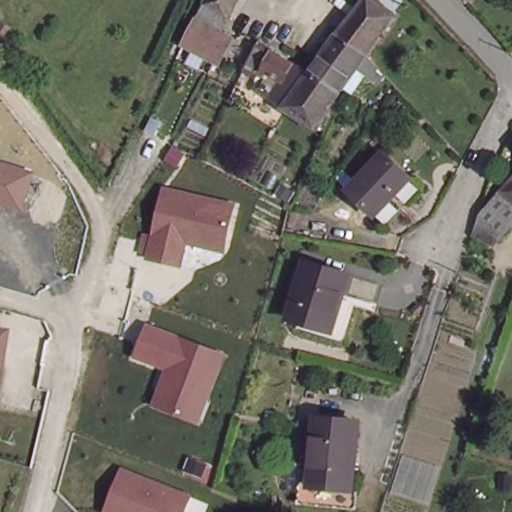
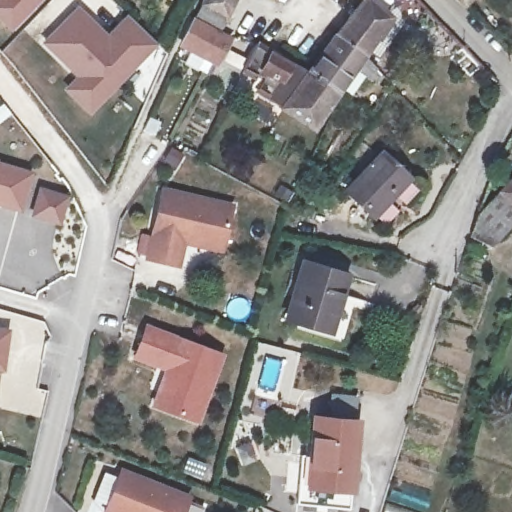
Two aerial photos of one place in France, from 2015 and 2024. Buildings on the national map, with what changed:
new [(0,28),(0,0),(42,0),(6,35),(0,28)]
unchanged [(230,37),(215,62),(173,37),(190,0),(199,0),(203,3),(205,0),(233,0),(216,27),(230,37)]
unchanged [(370,55),(362,66),(332,39),(356,0),(359,0),(389,27),(370,55)]
new [(105,35),(125,18),(156,52),(90,119),(61,89),(73,79),(39,42),(75,7),(105,35)]
unchanged [(337,102),(307,79),(332,39),(362,66),(337,102)]
unchanged [(312,138),(250,95),(264,76),(250,65),(264,45),(307,79),(337,102),(312,138)]
unchanged [(373,154),(406,172),(383,215),(350,196),(373,154)]
unchanged [(31,172),(20,210),(0,204),(0,163),(31,172)]
unchanged [(223,252),(185,244),(180,268),(143,261),(160,187),(235,204),(223,252)]
unchanged [(512,227),(491,251),(472,233),(512,187),(512,227)]
unchanged [(300,264),(349,276),(336,334),(286,321),(300,264)]
unchanged [(223,353),(197,423),(150,407),(165,370),(131,357),(145,322),(223,353)]
unchanged [(0,372),(0,327),(9,330),(3,372),(0,372)]
unchanged [(316,427),(360,432),(350,500),(307,493),(316,427)]
unchanged [(184,512),(102,512),(120,467),(190,496),(184,512)]

